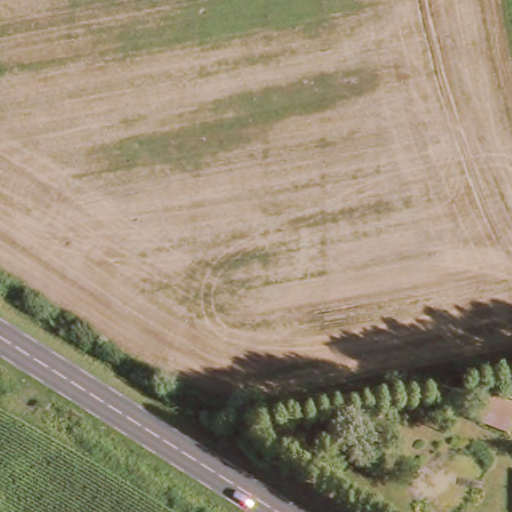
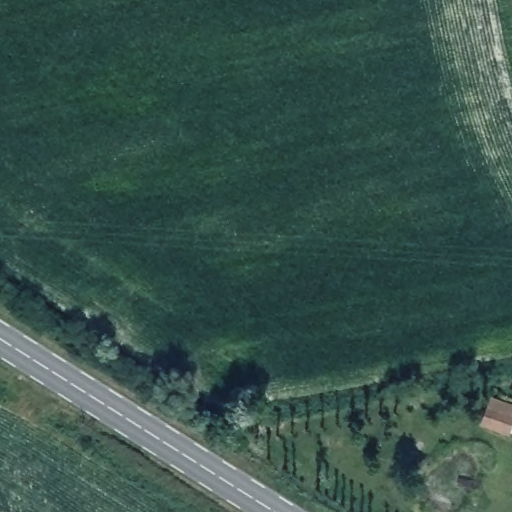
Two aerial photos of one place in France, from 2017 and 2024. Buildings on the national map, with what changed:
unchanged [(500,409),(512,414),(512,431),(492,422),(500,409)]

